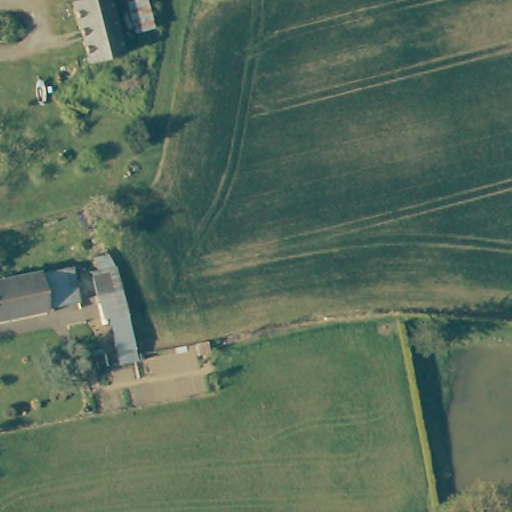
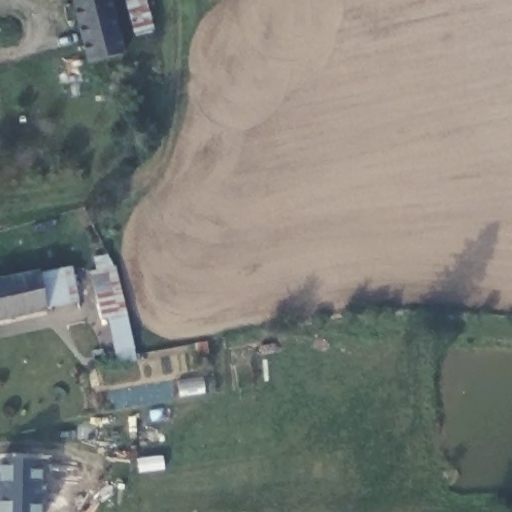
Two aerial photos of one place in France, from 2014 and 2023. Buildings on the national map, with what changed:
unchanged [(81,0),(110,0),(123,55),(86,64),(71,3),(81,0)]
unchanged [(124,0),(148,0),(151,19),(128,23),(124,0)]
unchanged [(131,349),(105,356),(91,271),(114,266),(131,349)]
unchanged [(44,269),(45,272),(59,270),(64,300),(48,302),(49,308),(0,312),(0,272),(13,272),(44,269)]
new [(0,476),(0,462),(40,463),(39,512),(0,512),(0,476)]

